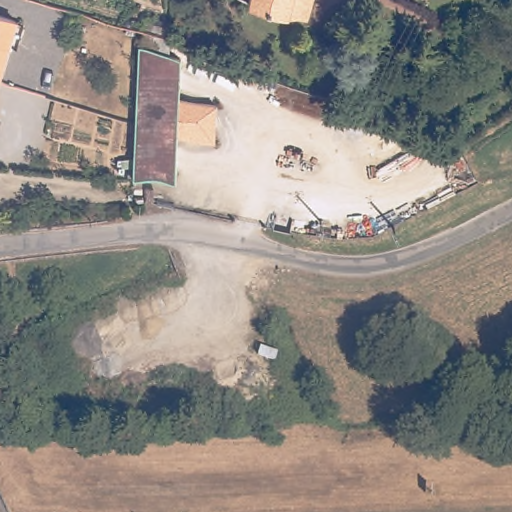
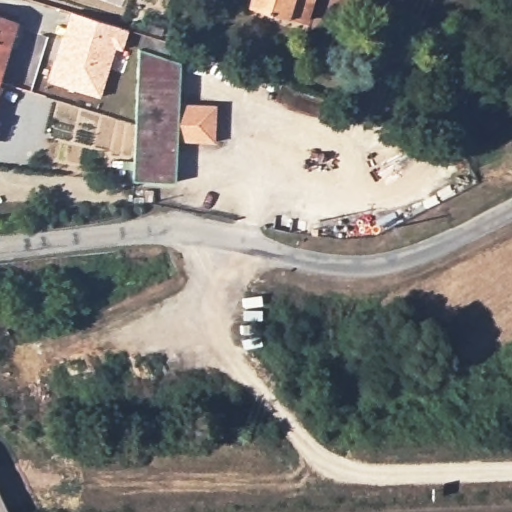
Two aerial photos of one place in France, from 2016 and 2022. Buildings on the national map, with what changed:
unchanged [(253,0),(305,0),(300,15),(253,0)]
new [(122,50),(115,47),(100,97),(49,81),(70,10),(129,29),(122,50)]
unchanged [(0,50),(0,12),(9,14),(0,50)]
unchanged [(179,181),(137,177),(142,106),(147,60),(167,60),(187,61),(184,101),(203,103),(221,105),(218,141),(206,140),(182,138),(179,181)]

